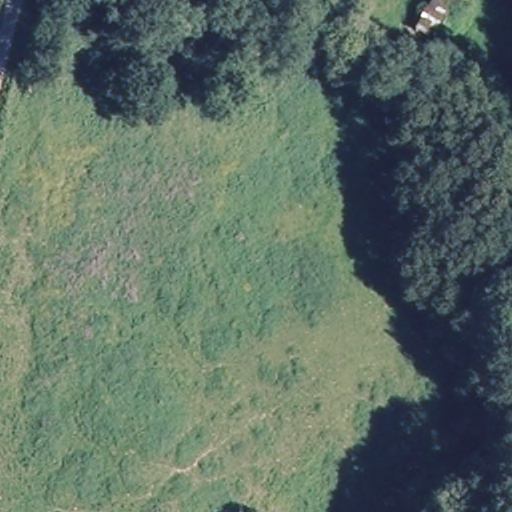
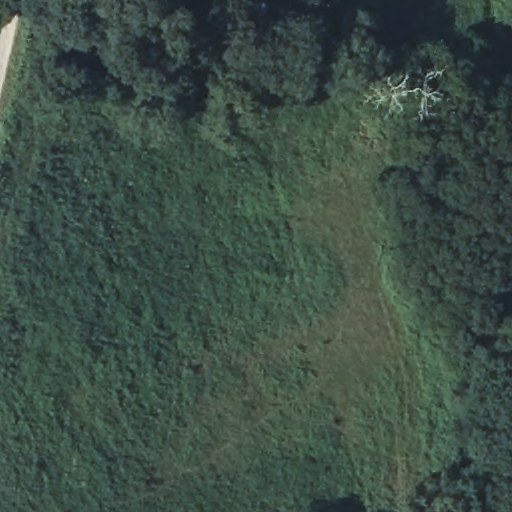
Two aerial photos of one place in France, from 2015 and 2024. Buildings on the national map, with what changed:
unchanged [(434,38),(413,30),(429,0),(453,0),(434,38)]

